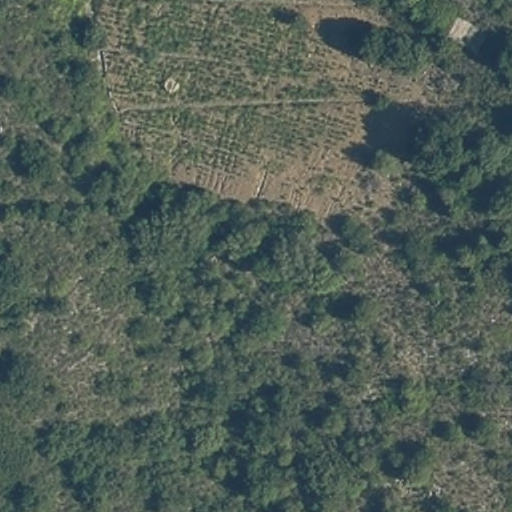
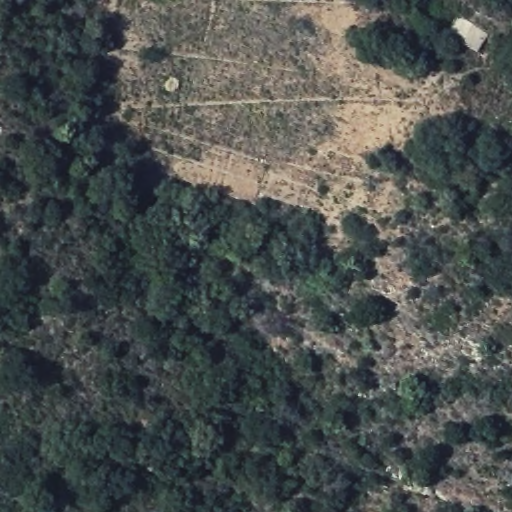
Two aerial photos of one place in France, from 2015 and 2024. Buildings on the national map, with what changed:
unchanged [(495,35),(487,55),(454,39),(462,18),(495,35)]

